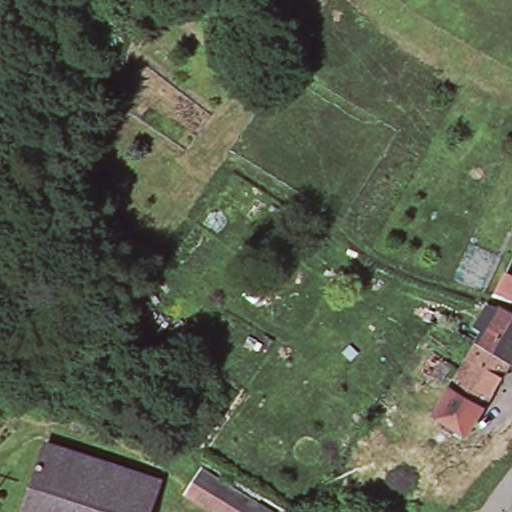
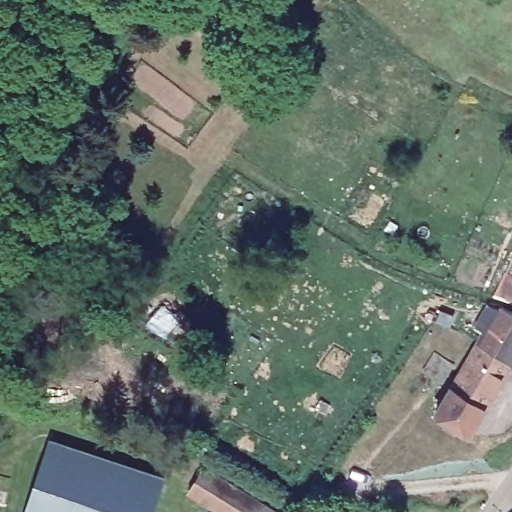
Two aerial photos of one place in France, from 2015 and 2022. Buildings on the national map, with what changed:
unchanged [(505,275),(512,279),(512,304),(493,299),(505,275)]
unchanged [(476,344),(482,334),(472,329),(486,305),(497,309),(498,307),(512,314),(512,359),(508,364),(476,344)]
unchanged [(476,344),(508,364),(482,409),(448,390),(476,344)]
unchanged [(437,349),(455,361),(444,379),(425,367),(437,349)]
unchanged [(448,390),(482,409),(467,436),(433,415),(448,390)]
unchanged [(46,445),(163,484),(154,512),(24,512),(46,445)]
unchanged [(188,494),(202,469),(220,479),(222,475),(263,500),(260,504),(273,512),(218,512),(188,494)]

